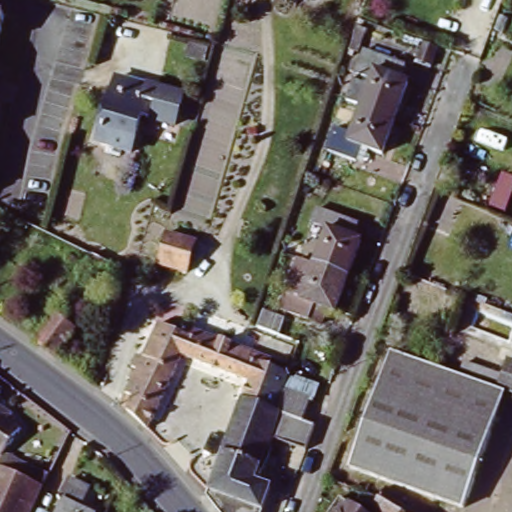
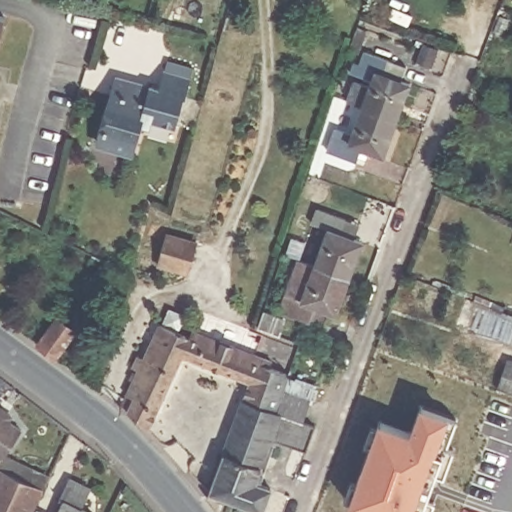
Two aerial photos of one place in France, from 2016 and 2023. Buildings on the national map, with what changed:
unchanged [(2,20),(0,29),(0,20),(2,20)]
unchanged [(362,110),(374,76),(357,70),(360,59),(362,55),(390,65),(388,69),(385,79),(407,87),(395,122),(362,110)]
unchanged [(110,154),(112,147),(99,144),(118,77),(180,96),(172,126),(140,116),(129,153),(120,150),(119,156),(110,154)]
unchanged [(328,156),(337,130),(352,136),(362,110),(395,122),(382,159),(367,154),(362,168),(328,156)]
unchanged [(342,280),(309,269),(322,234),(310,230),(317,215),(340,224),(334,239),(355,246),(342,280)]
unchanged [(342,280),(327,316),(307,309),(302,323),(278,315),(284,300),(295,305),(309,269),(342,280)]
unchanged [(35,341),(55,315),(72,328),(54,354),(35,341)]
unchanged [(300,425),(312,429),(306,446),(271,433),(257,468),(224,455),(250,387),(182,360),(147,432),(119,408),(158,327),(162,318),(190,330),(187,337),(286,377),(280,392),(307,403),(300,425)]
demolished [(462,510),(350,470),(392,356),(498,394),(505,396),(462,510)]
unchanged [(512,399),(505,396),(498,394),(509,363),(512,364),(512,399)]
new [(455,448),(445,476),(435,473),(427,498),(436,501),(432,512),(366,512),(347,505),(379,420),(412,431),(420,403),(450,414),(457,418),(447,445),(455,448)]
unchanged [(19,432),(0,459),(0,418),(19,432)]
unchanged [(252,485),(267,492),(260,512),(220,512),(208,497),(224,455),(257,468),(252,485)]
unchanged [(2,473),(5,468),(44,486),(37,500),(32,512),(0,512),(0,480),(2,473)]
unchanged [(57,504),(67,482),(89,493),(79,512),(58,512),(61,506),(57,504)]
demolished [(416,512),(369,512),(377,501),(384,490),(416,512)]
demolished [(325,512),(335,498),(355,512),(325,512)]

